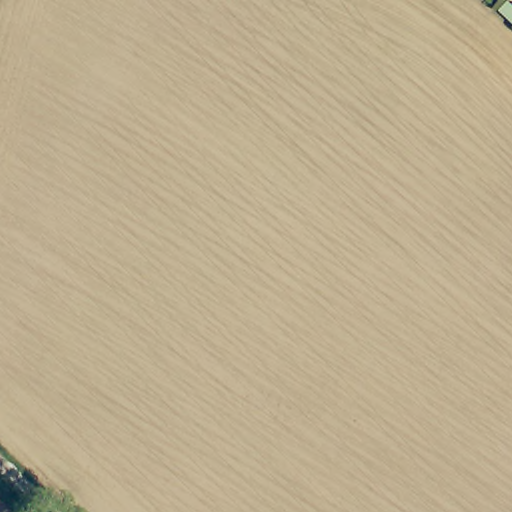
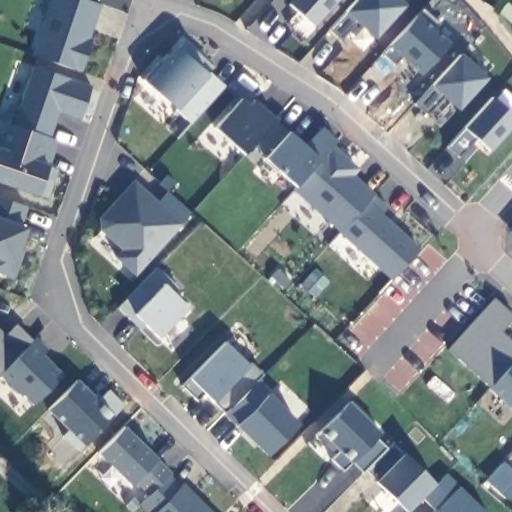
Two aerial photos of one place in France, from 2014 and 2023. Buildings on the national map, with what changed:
new [(94,37),(83,71),(32,54),(51,0),(92,0),(100,2),(90,36),(94,37)]
new [(289,4),(292,0),(334,0),(312,25),(289,4)]
new [(375,38),(358,22),(341,40),(328,29),(354,0),(398,0),(404,5),(375,38)]
new [(422,8),(439,24),(433,30),(448,44),(421,73),(402,56),(394,65),(381,53),(415,15),(422,8)]
new [(193,121),(175,109),(143,81),(175,45),(208,73),(224,86),(193,121)]
new [(459,54),(485,77),(458,107),(445,95),(427,115),(415,103),(459,54)]
new [(81,116),(51,107),(46,120),(52,122),(47,135),(11,122),(31,65),(90,85),(81,116)]
new [(512,115),(512,126),(490,150),(477,138),(459,157),(446,145),(491,96),(512,115)]
new [(240,99),(247,105),(253,99),(275,120),(243,155),(213,127),(240,99)]
new [(57,141),(49,166),(40,196),(0,183),(0,120),(11,122),(47,135),(57,141)]
new [(332,145),(355,167),(344,179),(352,186),(357,180),(372,193),(342,229),(290,187),(294,185),(265,160),(290,131),(306,145),(321,125),(338,140),(332,145)]
new [(135,276),(114,256),(120,250),(98,226),(99,219),(133,180),(181,224),(135,276)]
new [(381,214),(419,247),(390,280),(339,233),(342,229),(372,193),(385,207),(381,214)]
new [(19,224),(29,227),(17,265),(13,276),(0,272),(0,195),(27,205),(19,224)]
new [(156,267),(174,285),(169,287),(188,306),(159,337),(147,325),(139,331),(116,308),(156,267)]
new [(447,348),(493,296),(512,313),(512,319),(502,330),(512,340),(512,407),(490,388),(447,348)]
new [(4,335),(15,321),(44,350),(40,354),(65,376),(35,406),(22,393),(19,396),(0,377),(0,331),(4,335)]
new [(225,341),(248,365),(251,362),(264,374),(225,413),(205,393),(198,400),(182,385),(225,341)]
new [(122,413),(118,410),(78,451),(62,436),(68,431),(47,410),(77,381),(97,401),(109,389),(126,407),(122,413)]
new [(298,424),(268,455),(226,412),(256,382),(298,424)]
new [(349,401),(381,433),(343,471),(331,458),(339,450),(320,430),(349,401)]
new [(123,425),(157,458),(215,512),(144,512),(136,504),(146,495),(133,485),(98,453),(123,425)]
new [(377,437),(387,447),(363,472),(352,462),(377,437)]
new [(436,483),(408,512),(376,481),(378,480),(366,469),(393,442),(436,483)]
new [(447,472),(487,512),(432,512),(435,509),(423,497),(447,472)]

